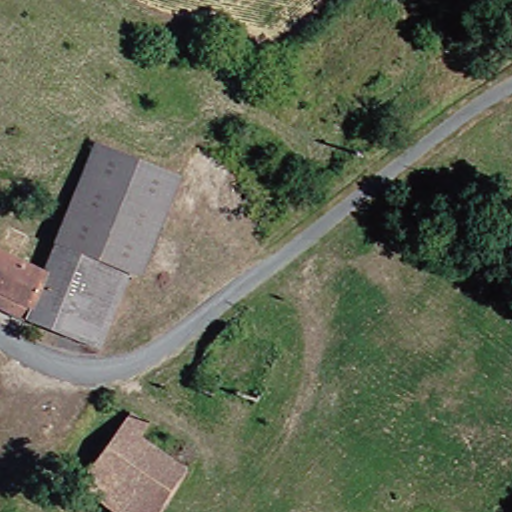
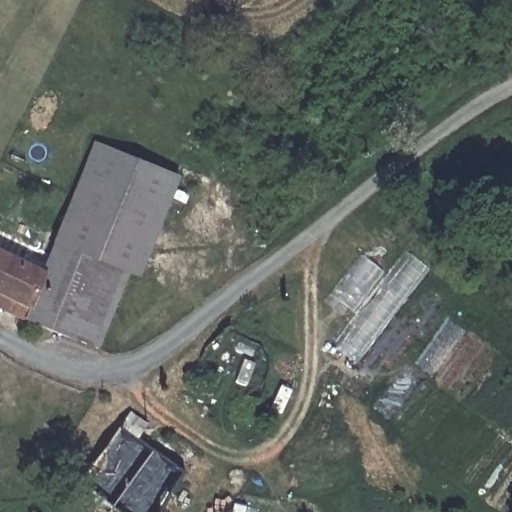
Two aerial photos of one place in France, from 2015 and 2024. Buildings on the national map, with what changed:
unchanged [(133,284),(121,278),(54,237),(74,203),(107,146),(185,189),(143,265),(133,284)]
unchanged [(36,263),(54,237),(121,278),(83,348),(9,312),(0,307),(0,242),(36,263)]
new [(355,364),(332,345),(356,315),(329,295),(361,256),(387,277),(406,251),(430,270),(355,364)]
unchanged [(135,414),(147,424),(136,440),(182,469),(153,512),(110,512),(81,491),(135,414)]

